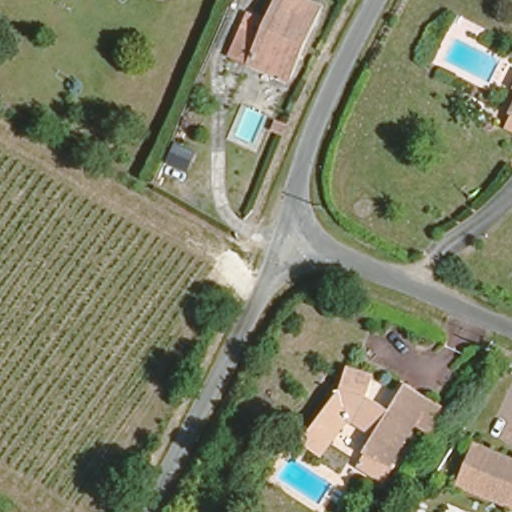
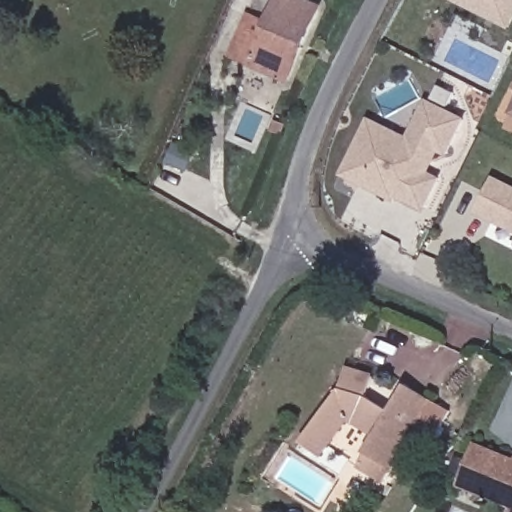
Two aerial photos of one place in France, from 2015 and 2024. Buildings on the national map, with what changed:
unchanged [(247,25),(265,33),(279,0),(320,0),(323,1),(290,74),(236,51),(247,25)]
new [(454,0),(482,0),(476,11),(454,0)]
new [(512,0),(512,20),(506,31),(476,11),(482,0),(512,0)]
new [(366,119),(382,129),(403,140),(423,103),(460,123),(441,157),(430,150),(417,173),(435,181),(418,212),(391,198),(389,202),(337,175),(355,141),(366,119)]
unchanged [(511,105),(512,104),(512,106),(511,105)]
new [(490,179),(512,191),(512,234),(472,213),(490,179)]
unchanged [(401,381),(426,393),(390,462),(363,449),(374,428),(346,412),(323,451),(303,441),(318,418),(331,423),(338,413),(325,406),(331,394),(335,363),(366,368),(365,391),(388,403),(401,381)]
unchanged [(512,459),(512,496),(500,491),(476,481),(476,474),(467,469),(465,468),(474,443),(481,447),(512,459)]
unchanged [(512,496),(512,512),(505,509),(507,504),(495,499),(500,491),(512,496)]

